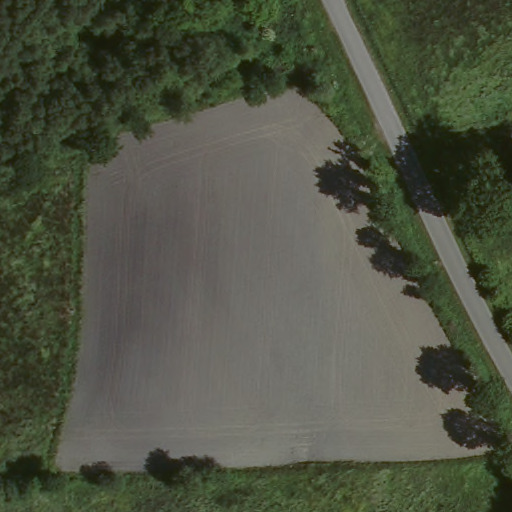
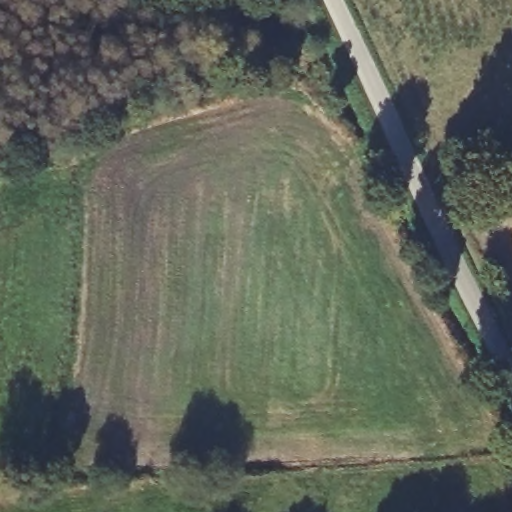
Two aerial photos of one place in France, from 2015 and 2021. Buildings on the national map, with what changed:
[]

